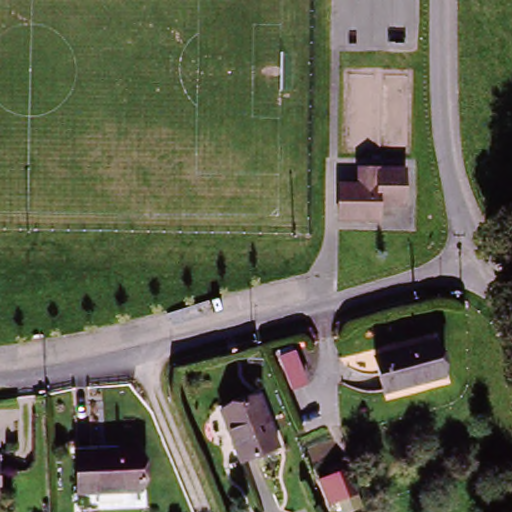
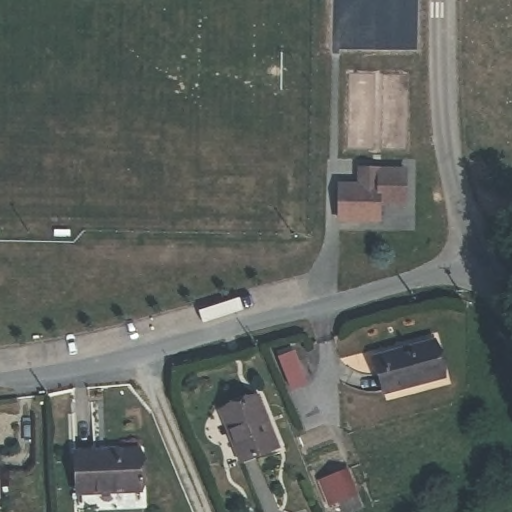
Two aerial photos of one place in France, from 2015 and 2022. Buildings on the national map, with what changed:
unchanged [(329,225),(330,187),(355,185),(357,168),(405,168),(401,210),(375,209),(375,227),(329,225)]
unchanged [(443,372),(394,385),(385,353),(437,339),(443,372)]
unchanged [(275,359),(300,349),(310,390),(290,397),(275,359)]
unchanged [(222,416),(259,402),(276,451),(240,464),(222,416)]
unchanged [(140,452),(142,492),(77,493),(78,453),(140,452)]
unchanged [(346,472),(359,502),(325,512),(323,512),(310,484),(346,472)]

